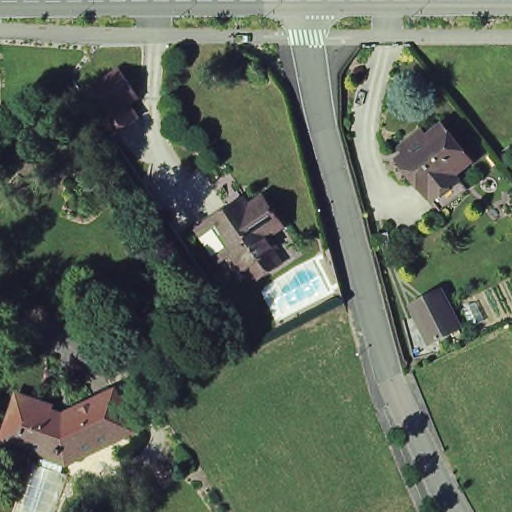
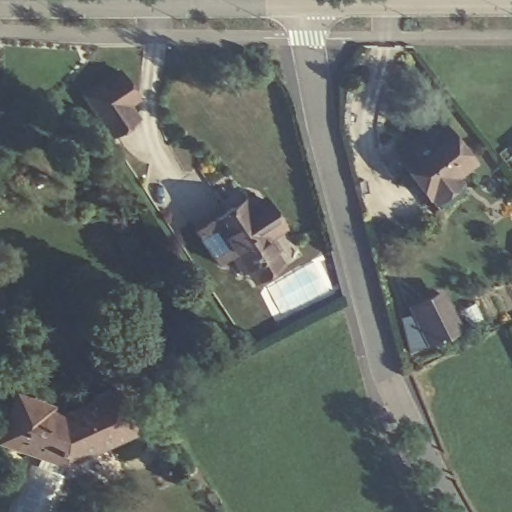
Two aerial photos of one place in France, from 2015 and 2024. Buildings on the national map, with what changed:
unchanged [(118,69),(135,95),(125,102),(134,117),(107,135),(80,94),(118,69)]
unchanged [(393,155),(406,145),(400,139),(414,127),(419,134),(436,121),(464,155),(447,168),(460,183),(432,205),(421,190),(393,155)]
unchanged [(252,281),(245,268),(241,271),(230,254),(217,262),(196,229),(209,221),(242,200),(247,207),(261,199),(279,229),(267,236),(275,250),(272,251),(280,264),(252,281)]
unchanged [(434,342),(417,307),(442,294),(459,329),(434,342)]
unchanged [(37,458),(32,456),(0,443),(0,434),(12,401),(43,413),(42,417),(57,422),(107,397),(117,417),(126,436),(60,470),(56,479),(32,471),(37,458)]

